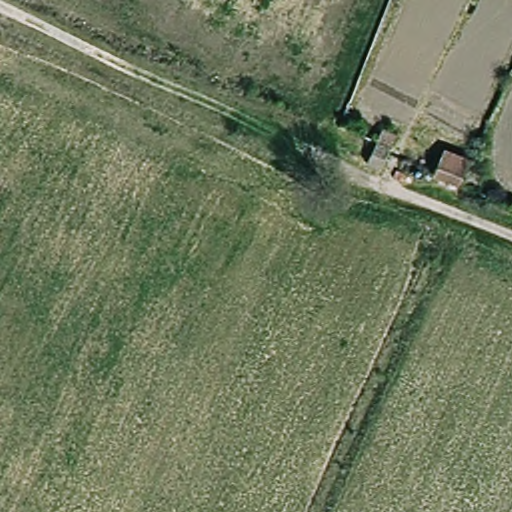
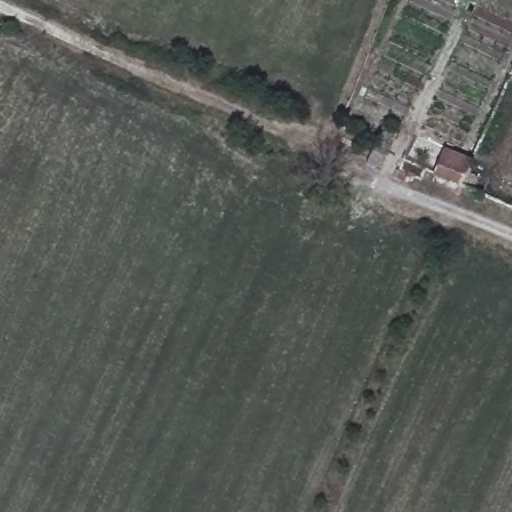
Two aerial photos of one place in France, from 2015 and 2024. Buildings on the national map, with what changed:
unchanged [(368,143),(375,129),(382,131),(390,134),(382,155),(376,170),(358,164),(368,143)]
unchanged [(435,175),(445,150),(457,155),(471,161),(463,182),(462,183),(461,187),(435,175)]
unchanged [(427,172),(424,179),(399,168),(404,156),(429,166),(427,172)]

